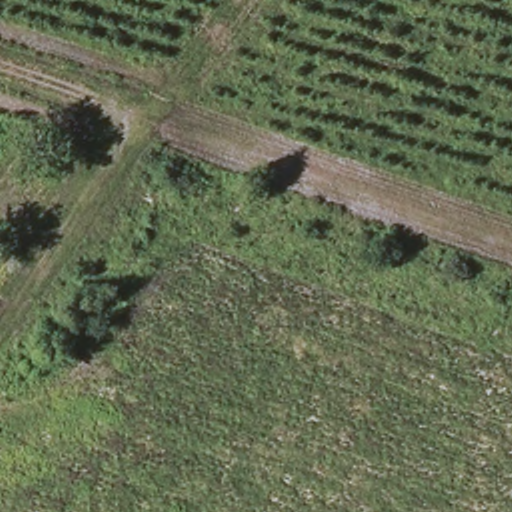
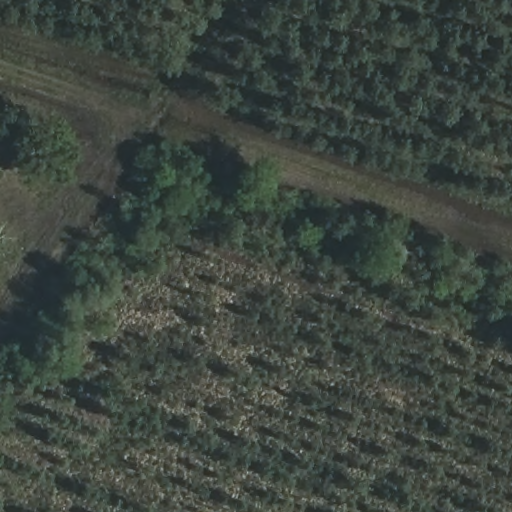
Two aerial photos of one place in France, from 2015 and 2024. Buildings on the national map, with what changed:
[]

